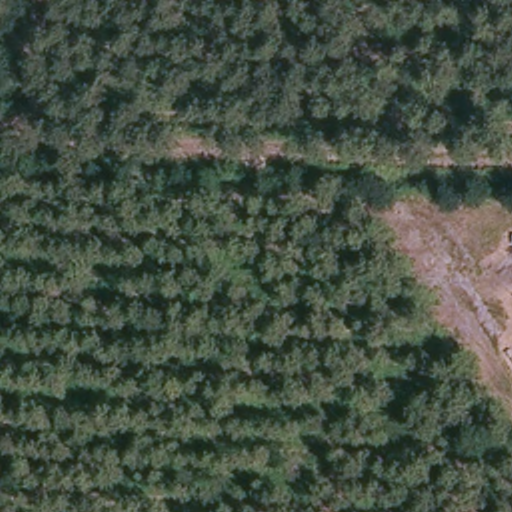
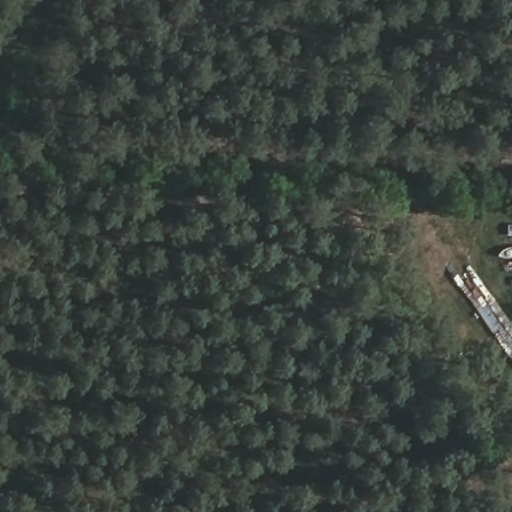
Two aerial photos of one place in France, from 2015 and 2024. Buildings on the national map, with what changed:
[]

